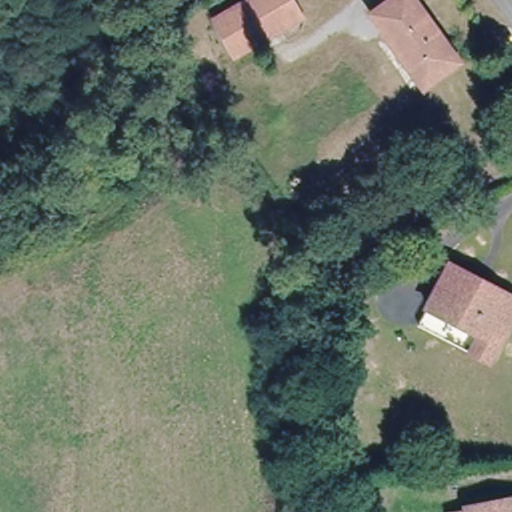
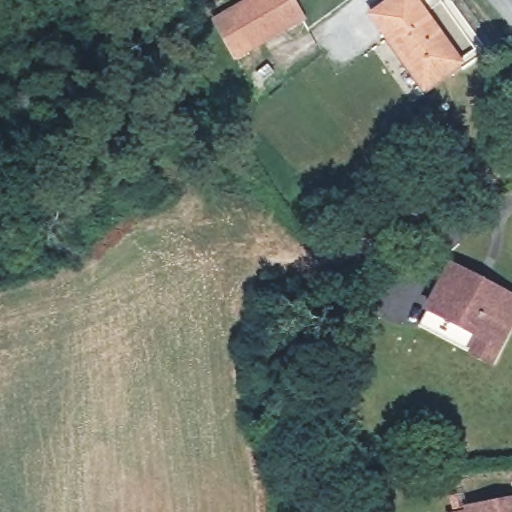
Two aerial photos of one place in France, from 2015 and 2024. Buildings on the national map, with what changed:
unchanged [(300,18),(257,42),(239,53),(218,19),(250,0),(289,0),(300,18)]
unchanged [(458,62),(423,86),(373,15),(392,0),(414,0),(458,62)]
unchanged [(512,309),(512,319),(493,354),(423,316),(446,274),(512,309)]
unchanged [(485,368),(415,330),(423,316),(493,354),(485,368)]
unchanged [(512,501),(512,512),(459,512),(459,511),(512,501)]

